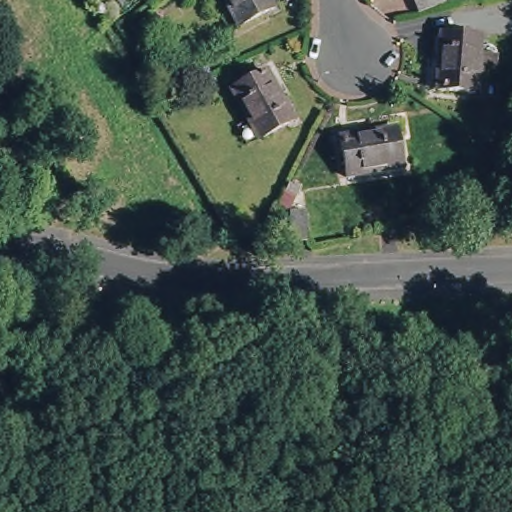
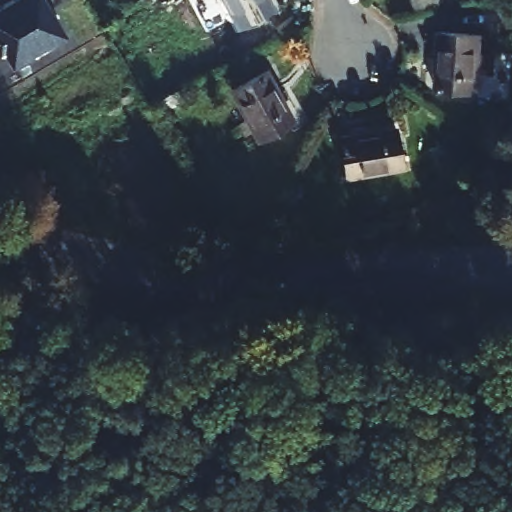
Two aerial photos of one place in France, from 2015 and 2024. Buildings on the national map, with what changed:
new [(51,5),(65,33),(11,65),(0,44),(0,4),(7,0),(60,0),(51,5)]
unchanged [(221,0),(274,0),(276,5),(268,10),(264,3),(232,21),(221,0)]
unchanged [(412,0),(444,0),(445,2),(418,14),(412,0)]
unchanged [(438,58),(433,57),(435,27),(444,28),(444,35),(480,37),(478,57),(495,59),(495,71),(477,70),(475,92),(436,90),(438,58)]
unchanged [(226,86),(260,67),(273,89),(280,86),(296,117),(289,121),(285,115),(253,134),(226,86)]
unchanged [(371,132),(370,127),(402,122),(403,129),(396,131),(402,167),(345,177),(340,138),(371,132)]
unchanged [(280,195),(289,178),(299,184),(288,206),(277,201),(280,195)]
demolished [(260,236),(248,236),(246,205),(261,205),(262,230),(263,236),(260,236)]
unchanged [(290,207),(305,207),(306,236),(292,237),(290,207)]

